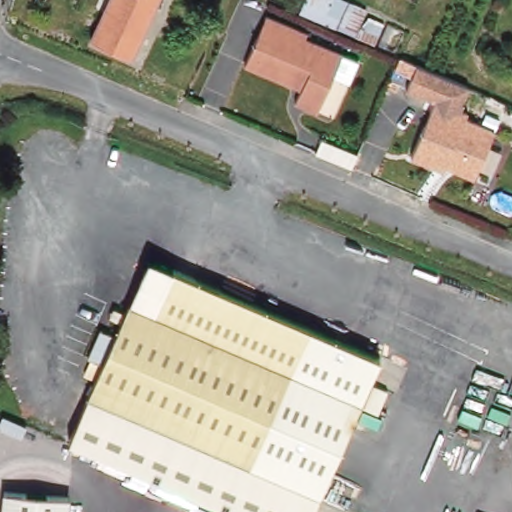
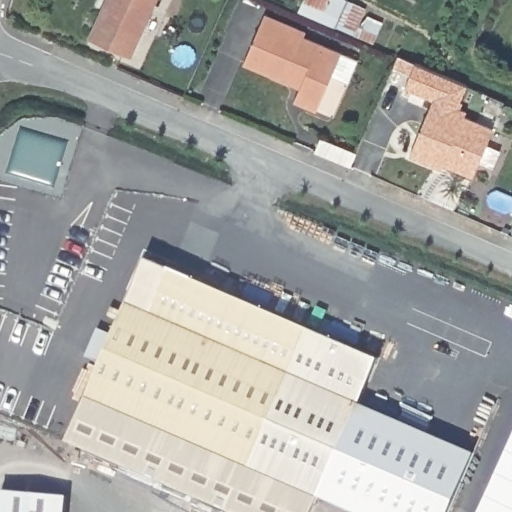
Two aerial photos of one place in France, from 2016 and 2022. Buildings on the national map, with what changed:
unchanged [(87,32),(103,0),(155,0),(130,52),(87,32)]
unchanged [(341,30),(293,12),(299,0),(343,0),(352,5),(341,30)]
unchanged [(262,17),(303,36),(301,40),(338,57),(312,115),(290,105),(298,87),(285,81),(283,86),(240,66),(262,17)]
unchanged [(466,111),(464,117),(492,131),(474,176),(444,162),(441,167),(410,153),(436,97),(466,111)]
unchanged [(356,151),(349,168),(303,147),(310,132),(356,151)]
unchanged [(383,358),(317,512),(224,512),(66,444),(146,259),(383,358)]
new [(476,452),(450,512),(357,512),(323,497),(363,403),(476,452)]
unchanged [(2,487),(65,493),(64,512),(0,512),(2,487)]

